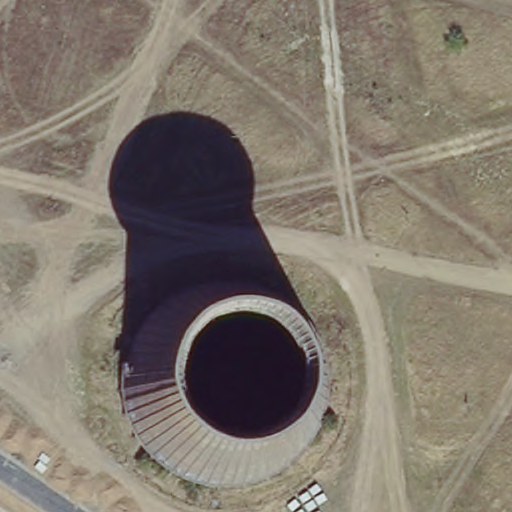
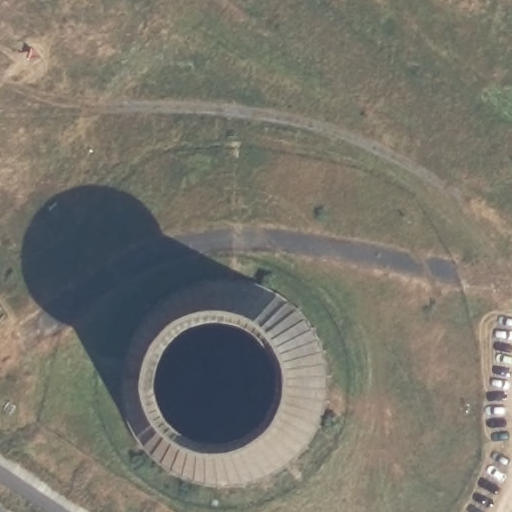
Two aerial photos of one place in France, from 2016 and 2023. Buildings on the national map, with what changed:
unchanged [(256,448),(237,453),(219,455),(202,451),(187,445),(174,435),(164,423),(156,405),(152,387),(154,368),(162,348),(175,330),(191,320),(207,314),(226,311),(250,316),(271,328),(285,345),(293,367),(296,384),(293,404),(287,420),(267,441),(256,448)]

